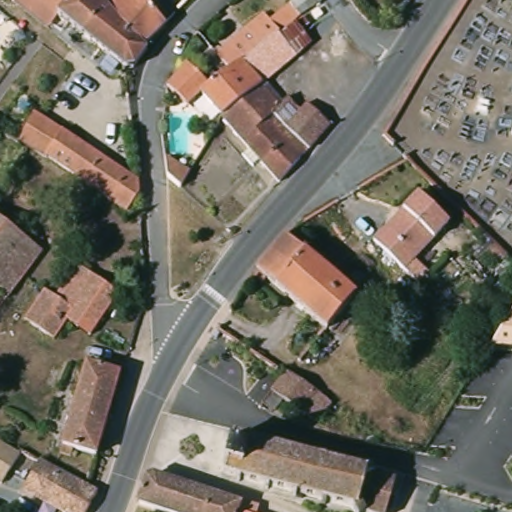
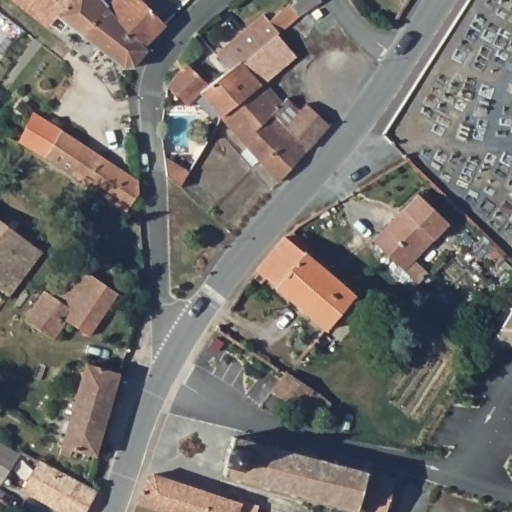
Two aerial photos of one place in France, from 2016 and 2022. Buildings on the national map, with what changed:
unchanged [(101,5),(140,47),(144,52),(132,67),(123,70),(34,0),(97,0),(101,5)]
unchanged [(162,25),(140,47),(101,5),(97,0),(142,0),(162,25)]
unchanged [(168,92),(169,90),(189,69),(213,95),(232,75),(219,58),(265,22),(270,27),(297,4),(293,0),(319,0),(245,67),(260,82),(266,90),(222,120),(212,110),(201,119),(191,108),(188,112),(167,93),(168,92)]
unchanged [(260,82),(245,67),(296,29),(315,47),(266,90),(260,82)]
unchanged [(261,165),(252,171),(243,160),(250,153),(222,120),(266,90),(282,108),(290,102),(301,115),(310,107),(330,129),(296,168),(279,187),(261,165)]
unchanged [(41,119),(130,180),(130,188),(119,207),(88,189),(24,147),(41,119)]
unchanged [(168,159),(191,170),(181,187),(169,176),(168,159)]
unchanged [(387,255),(374,242),(417,195),(447,224),(402,270),(387,255)]
unchanged [(0,293),(0,218),(45,251),(24,280),(9,299),(6,297),(0,293)]
unchanged [(286,242),(294,235),(299,240),(309,249),(303,256),(308,259),(356,301),(327,335),(257,277),(286,242)]
unchanged [(44,293),(52,299),(78,266),(117,295),(116,297),(90,336),(66,321),(51,338),(21,319),(42,293),(44,293)]
unchanged [(512,309),(512,314),(509,314),(512,309)]
unchanged [(96,457),(76,452),(74,458),(61,455),(87,365),(120,374),(96,457)]
unchanged [(271,379),(281,365),(290,370),(291,368),(318,390),(295,421),(293,420),(266,399),(278,383),(271,379)]
unchanged [(250,436),(253,437),(251,442),(276,448),(277,444),(281,445),(280,450),(305,456),(307,452),(310,453),(309,458),(334,465),(336,460),(340,462),(338,466),(366,473),(367,472),(374,471),(375,473),(375,476),(394,482),(397,482),(389,512),(365,512),(363,512),(354,512),(350,508),(330,502),(328,507),(324,506),(325,502),(300,495),(298,499),(294,498),(295,493),(271,486),(268,491),(265,490),(266,485),(242,478),(240,482),(237,482),(238,477),(225,473),(226,467),(235,437),(248,441),(250,436)]
unchanged [(15,451),(21,454),(4,482),(0,480),(0,443),(15,451)]
unchanged [(77,512),(58,512),(20,491),(37,464),(57,475),(77,487),(88,493),(77,512)]
unchanged [(173,512),(141,501),(149,479),(154,475),(159,476),(216,496),(222,497),(237,502),(241,503),(239,511),(242,512),(173,512)]

